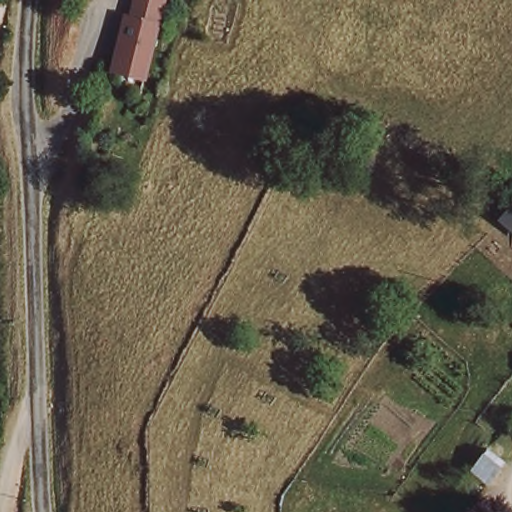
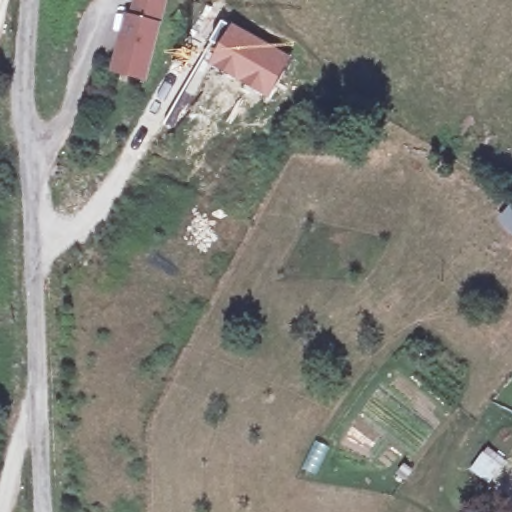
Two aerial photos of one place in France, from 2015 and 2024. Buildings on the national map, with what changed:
unchanged [(142,75),(117,69),(134,0),(156,0),(161,1),(142,75)]
new [(233,23),(293,55),(268,98),(212,64),(233,23)]

